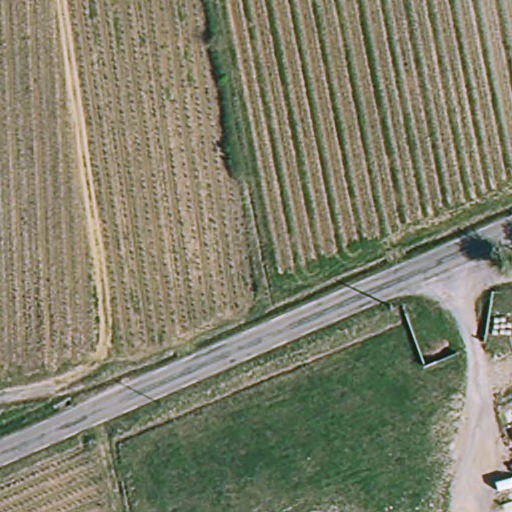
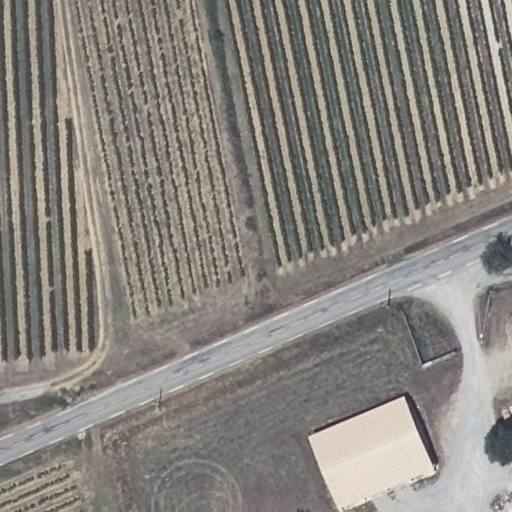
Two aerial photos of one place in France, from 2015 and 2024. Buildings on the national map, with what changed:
new [(438,471),(342,512),(311,439),(406,398),(438,471)]

